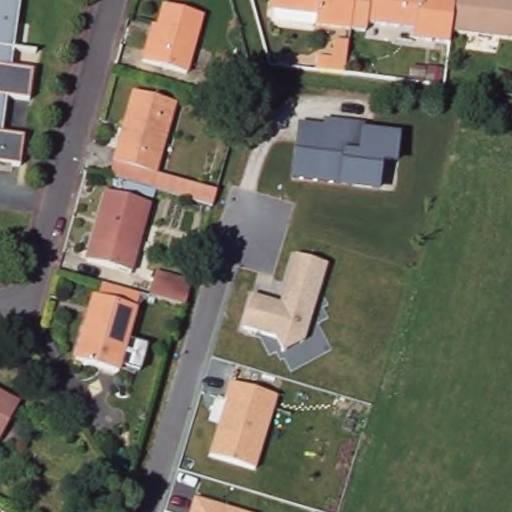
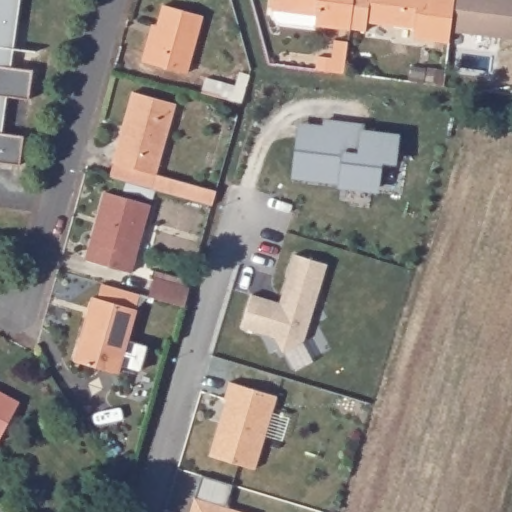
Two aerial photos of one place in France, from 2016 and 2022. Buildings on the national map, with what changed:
unchanged [(15,0),(8,48),(5,66),(33,70),(29,100),(1,96),(0,104),(0,0),(15,0)]
unchanged [(319,9),(292,5),(291,10),(272,8),(274,0),(355,0),(352,15),(351,28),(317,24),(319,9)]
unchanged [(355,0),(455,0),(454,9),(451,31),(450,44),(450,45),(413,40),(415,30),(367,23),(366,31),(351,28),(352,15),(355,0)]
unchanged [(455,0),(512,0),(512,39),(451,31),(454,9),(455,0)]
unchanged [(204,11),(188,70),(144,58),(151,30),(154,22),(159,23),(165,1),(204,11)]
unchanged [(333,51),(338,52),(341,34),(355,36),(354,37),(350,67),(331,65),(333,51)]
unchanged [(214,74),(239,80),(234,96),(210,90),(214,74)]
unchanged [(118,144),(125,119),(132,90),(175,101),(156,170),(152,185),(110,174),(114,160),(118,144)]
unchanged [(395,170),(382,168),(379,193),(336,188),(337,183),(290,177),(298,123),(325,127),(325,118),(367,123),(367,130),(399,134),(395,170)]
unchanged [(24,136),(19,166),(0,163),(0,133),(24,136)]
unchanged [(214,204),(152,185),(155,174),(217,190),(214,204)]
unchanged [(116,270),(90,263),(108,193),(150,203),(136,255),(131,273),(116,270)]
unchanged [(306,341),(285,352),(275,335),(243,330),(251,296),(280,304),(294,254),(330,263),(306,341)]
unchanged [(161,274),(197,283),(192,303),(189,303),(156,294),(161,274)]
unchanged [(95,299),(136,310),(121,372),(78,361),(95,299)]
unchanged [(255,469),(208,456),(229,382),(277,396),(255,469)]
unchanged [(22,401),(1,442),(0,442),(0,390),(22,401)]
unchanged [(195,498),(241,512),(190,512),(195,498)]

